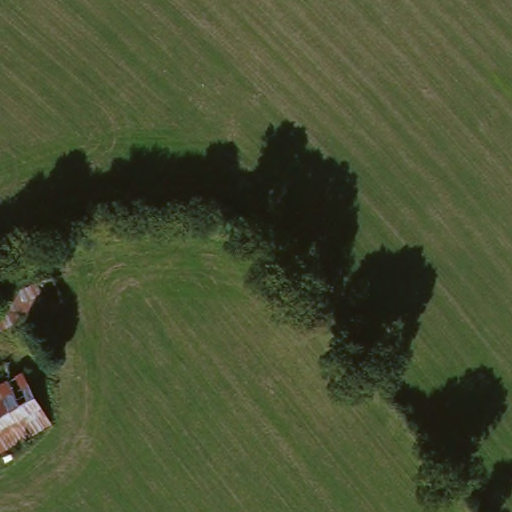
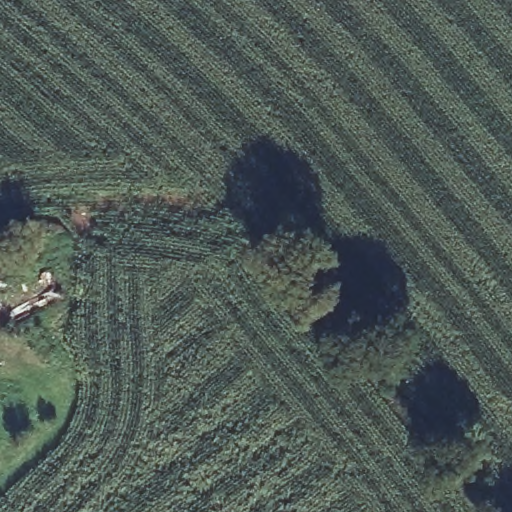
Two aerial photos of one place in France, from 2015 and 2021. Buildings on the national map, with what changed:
unchanged [(56,304),(0,328),(0,298),(44,278),(56,304)]
demolished [(1,381),(16,372),(46,428),(0,455),(0,378),(1,381)]

